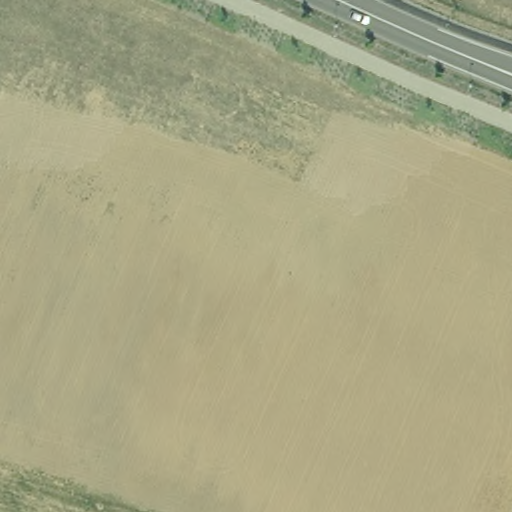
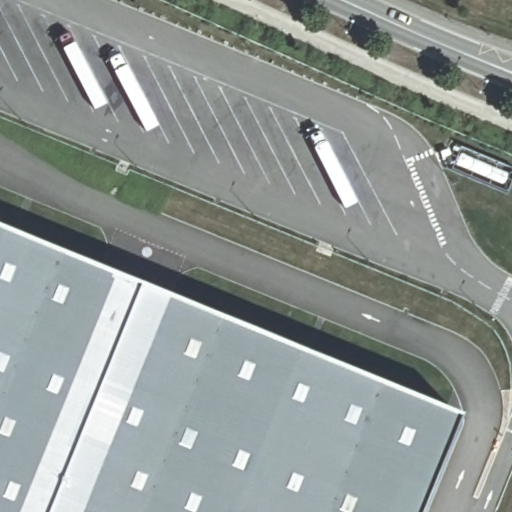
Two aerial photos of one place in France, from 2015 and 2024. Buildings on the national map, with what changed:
new [(0,512),(0,225),(412,392),(369,512),(0,512)]

